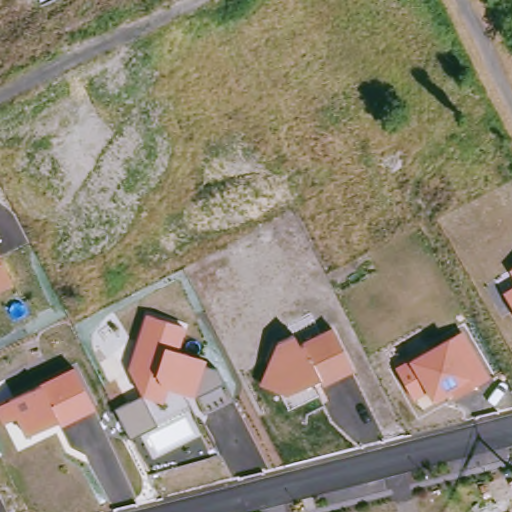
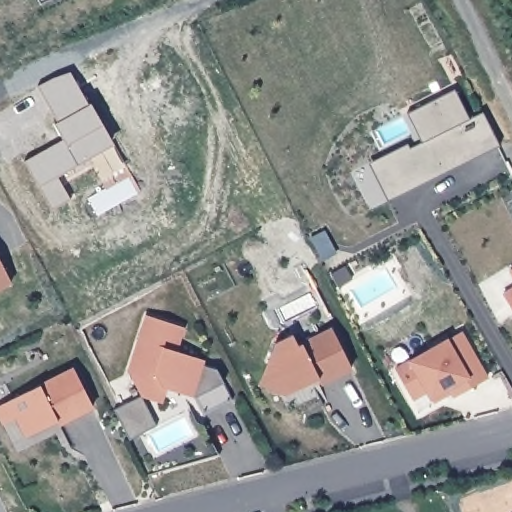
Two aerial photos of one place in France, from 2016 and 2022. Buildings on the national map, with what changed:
new [(60,141),(53,125),(56,123),(38,86),(53,79),(70,72),(88,107),(90,106),(101,129),(99,130),(108,147),(53,175),(65,201),(46,211),(20,161),(60,141)]
new [(469,119),(482,112),(498,147),(389,201),(369,164),(407,145),(409,149),(423,142),(408,113),(454,90),(469,119)]
unchanged [(0,289),(0,255),(13,282),(0,289)]
unchanged [(512,268),(512,274),(509,270),(512,268)]
unchanged [(512,287),(512,306),(503,291),(512,287)]
unchanged [(236,402),(206,417),(194,398),(171,392),(167,402),(144,396),(131,366),(148,316),(188,327),(182,349),(206,360),(205,367),(218,369),(224,384),(236,402)]
unchanged [(354,367),(323,384),(319,378),(288,394),(260,383),(275,342),(293,335),(297,343),(334,325),(354,367)]
unchanged [(491,375),(454,398),(449,392),(433,402),(428,393),(414,401),(394,367),(464,328),(491,375)]
unchanged [(95,408),(60,426),(58,421),(25,436),(16,417),(3,423),(0,416),(0,405),(75,366),(95,408)]

